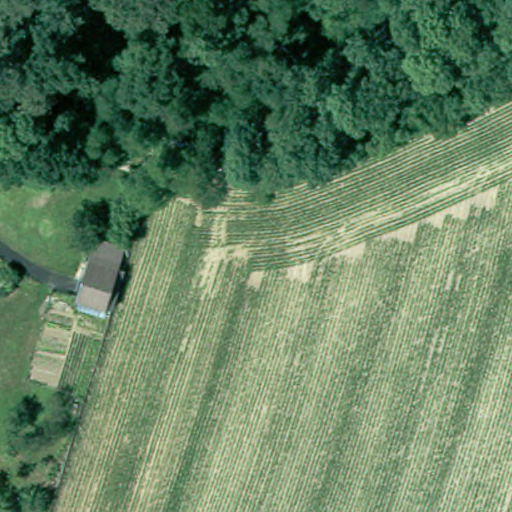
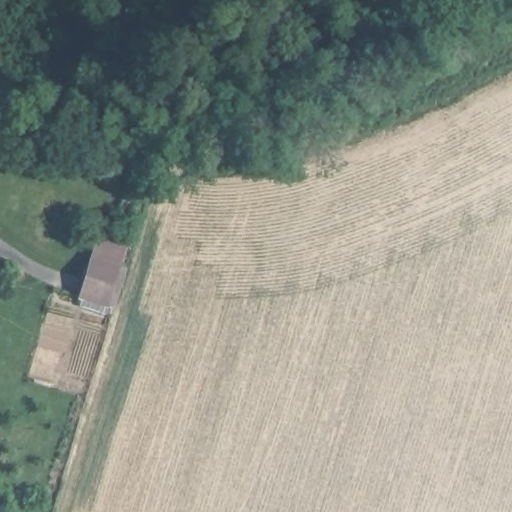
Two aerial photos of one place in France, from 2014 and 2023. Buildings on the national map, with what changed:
unchanged [(84,292),(93,259),(98,243),(136,255),(131,270),(122,302),(84,292)]

